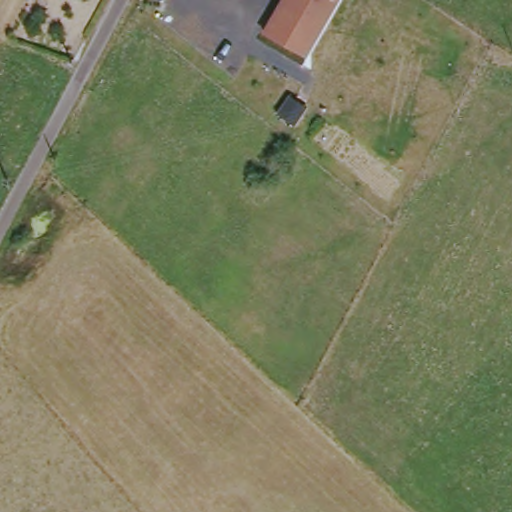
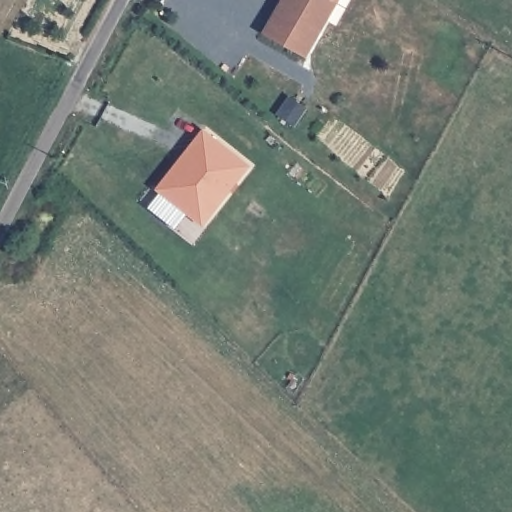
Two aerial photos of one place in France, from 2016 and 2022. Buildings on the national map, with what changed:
unchanged [(291,50),(267,35),(285,5),(291,4),(294,0),(343,0),(324,32),(307,60),(291,50)]
unchanged [(278,95),(292,107),(281,122),(266,110),(278,95)]
new [(155,189),(203,129),(250,165),(203,226),(155,189)]

